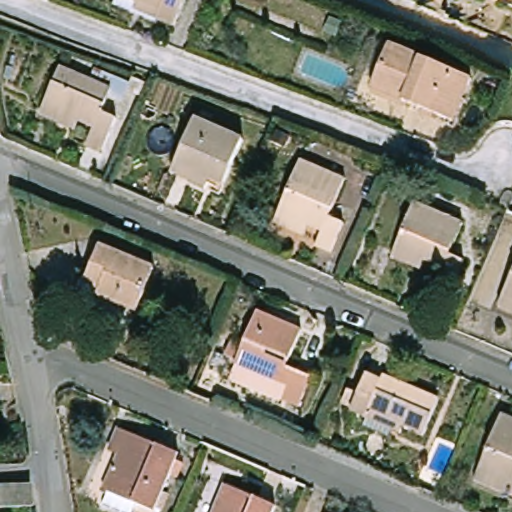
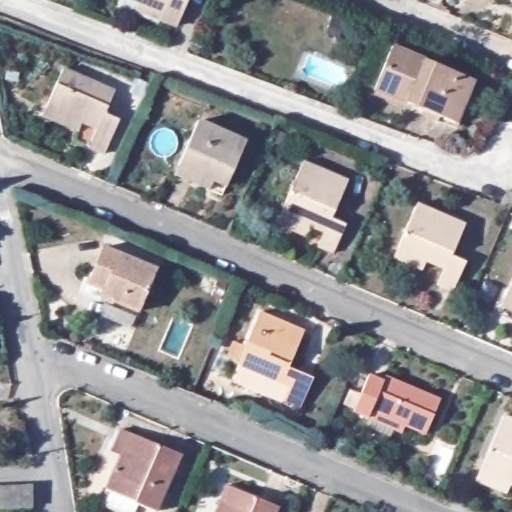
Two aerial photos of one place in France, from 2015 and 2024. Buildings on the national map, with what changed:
unchanged [(125,0),(178,0),(188,4),(176,30),(159,23),(135,13),(138,5),(125,0)]
unchanged [(395,45),(477,77),(459,121),(377,89),(395,45)]
unchanged [(46,119),(50,110),(53,102),(61,85),(62,82),(67,71),(117,92),(114,100),(108,115),(124,121),(123,124),(115,141),(112,149),(108,158),(92,151),(100,131),(85,124),(81,135),(46,119)]
unchanged [(176,176),(181,165),(201,120),(248,140),(229,185),(217,180),(212,192),(176,176)]
unchanged [(278,228),(283,217),(292,194),(305,162),(350,182),(335,217),(334,220),(348,225),(347,228),(340,244),(337,251),(334,256),(320,250),(320,248),(323,242),(325,235),(315,230),(310,241),(278,228)]
unchanged [(397,255),(401,246),(412,222),(412,220),(421,201),(468,221),(465,229),(457,248),(456,250),(470,256),(469,258),(461,275),(455,287),(440,281),(440,278),(443,272),(445,265),(430,258),(425,268),(397,255)]
unchanged [(85,290),(87,287),(102,250),(157,272),(153,282),(137,320),(123,314),(100,305),(82,297),(85,290)]
unchanged [(503,310),(507,301),(512,289),(512,314),(503,310)]
unchanged [(237,372),(240,366),(242,361),(230,355),(236,341),(248,346),(252,337),(264,311),(306,329),(303,336),(290,366),(316,377),(315,381),(303,407),(285,400),(290,387),(270,378),(267,385),(237,372)]
unchanged [(367,422),(352,416),(353,413),(357,405),(367,380),(380,385),(383,380),(438,402),(435,412),(431,420),(425,437),(403,428),(400,436),(367,422)]
unchanged [(480,480),(483,471),(486,465),(495,442),(497,440),(507,415),(512,418),(512,490),(510,493),(480,480)]
unchanged [(177,466),(157,512),(146,512),(104,495),(122,453),(113,450),(121,432),(130,436),(180,459),(177,466)]
unchanged [(232,485),(282,506),(279,512),(220,512),(232,485)]
unchanged [(27,512),(0,512),(0,490),(27,489),(27,512)]

